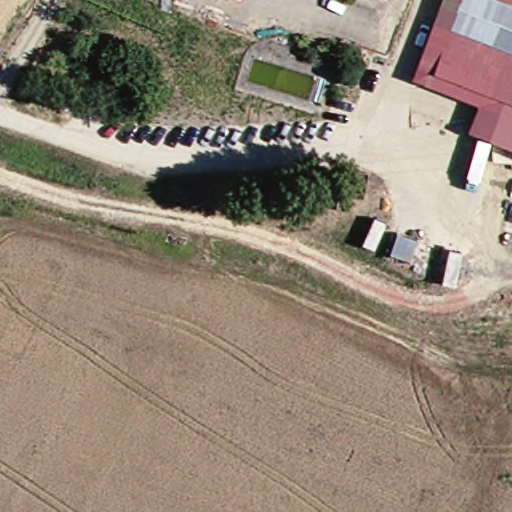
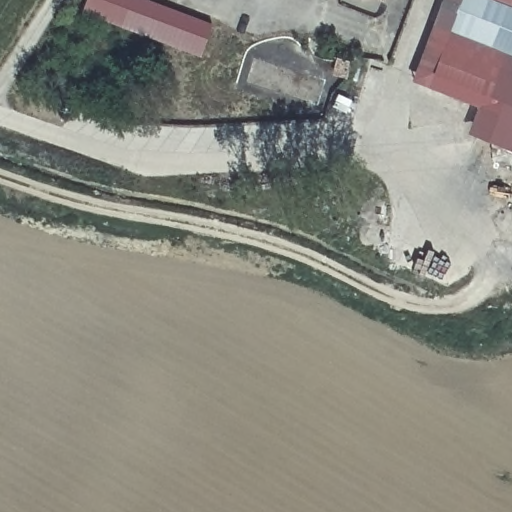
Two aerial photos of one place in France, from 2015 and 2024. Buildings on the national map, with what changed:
new [(88,0),(151,0),(213,23),(200,56),(83,13),(88,0)]
unchanged [(469,137),(467,122),(473,108),(420,88),(404,82),(414,55),(435,0),(512,0),(512,152),(511,155),(469,137)]
new [(512,155),(511,155),(512,152),(512,155)]

